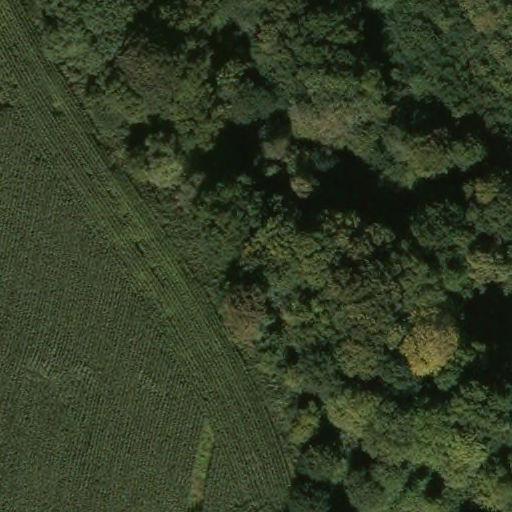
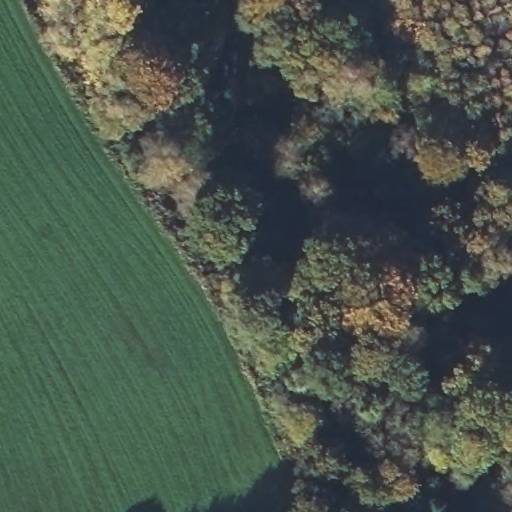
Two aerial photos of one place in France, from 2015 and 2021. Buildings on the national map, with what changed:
[]

